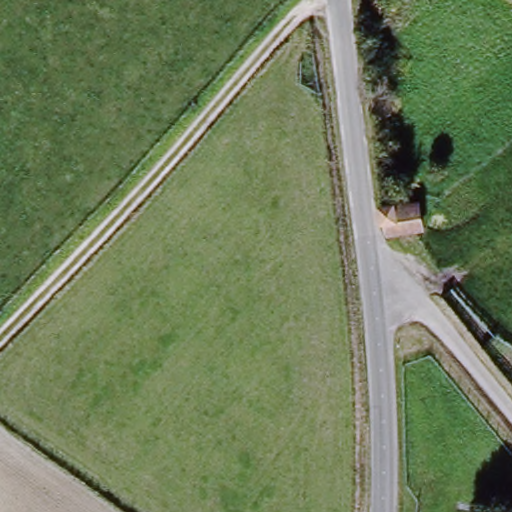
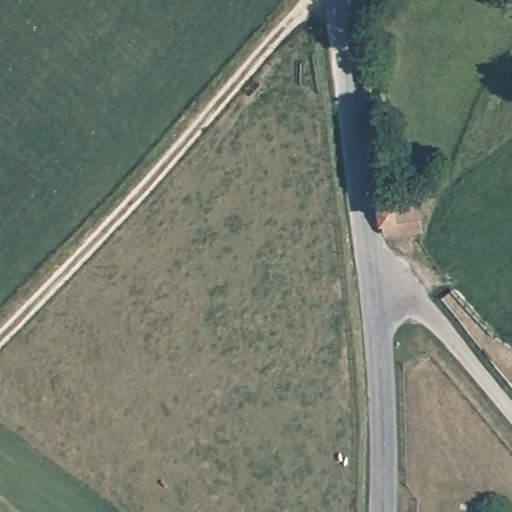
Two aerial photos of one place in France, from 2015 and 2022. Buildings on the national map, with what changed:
unchanged [(387,207),(421,207),(424,228),(391,228),(387,207)]

